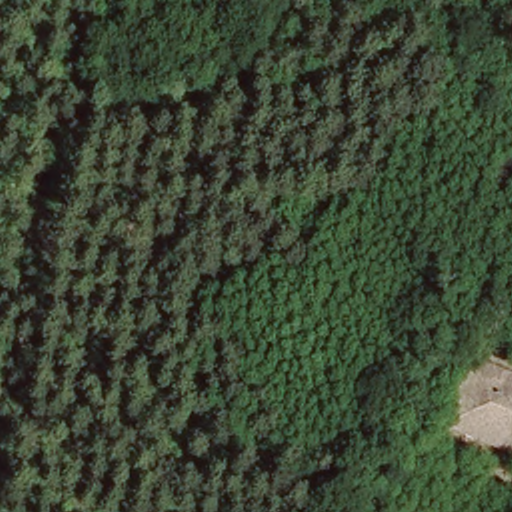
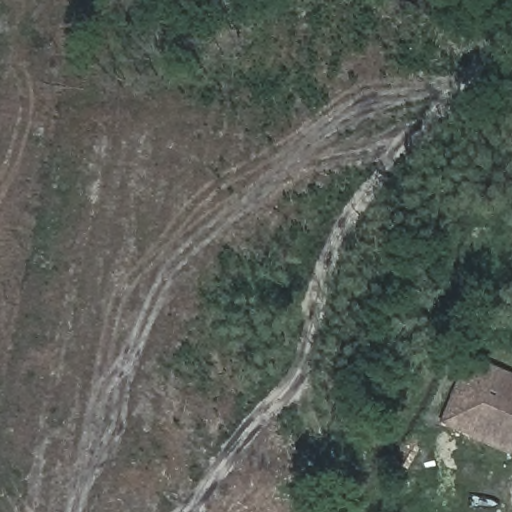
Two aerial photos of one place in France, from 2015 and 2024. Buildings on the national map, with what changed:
unchanged [(512,373),(512,455),(445,429),(474,358),(512,373)]

